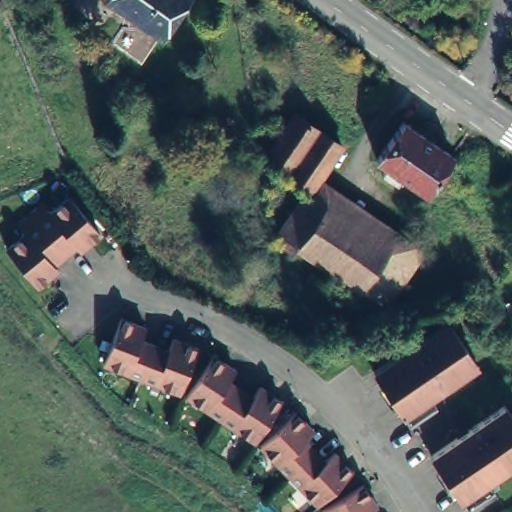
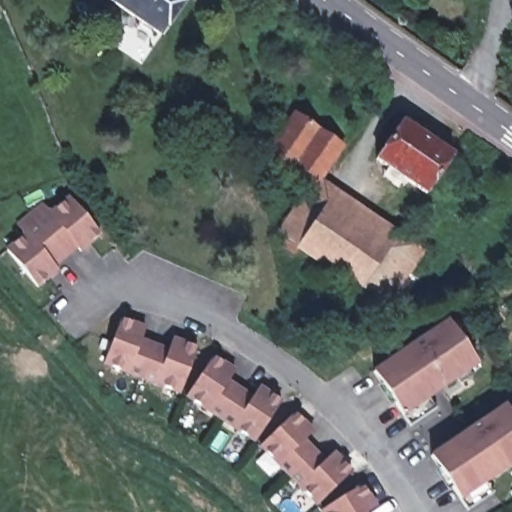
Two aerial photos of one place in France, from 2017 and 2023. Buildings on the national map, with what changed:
unchanged [(140,14),(120,0),(179,0),(160,28),(158,26),(149,39),(132,26),(140,14)]
unchanged [(120,40),(128,28),(149,42),(140,55),(120,40)]
unchanged [(311,196),(387,248),(397,235),(421,253),(383,306),(300,250),(293,260),(282,252),(288,243),(279,236),(307,192),(265,161),(297,118),(342,150),(311,196)]
unchanged [(415,190),(367,156),(394,120),(409,130),(414,124),(430,135),(426,141),(441,151),(415,190)]
unchanged [(95,238),(75,255),(72,251),(49,269),(52,274),(32,290),(2,252),(20,236),(12,227),(38,208),(45,216),(65,201),(95,238)]
unchanged [(145,326),(140,338),(168,348),(172,336),(196,346),(180,390),(103,362),(122,317),(145,326)]
unchanged [(399,357),(443,327),(472,371),(425,402),(432,413),(405,432),(367,378),(399,357)]
unchanged [(213,356),(233,369),(227,380),(253,397),(260,387),(281,401),(255,439),(216,415),(187,394),(213,356)]
unchanged [(469,512),(459,512),(425,462),(500,412),(512,431),(512,467),(482,487),(488,498),(487,500),(469,512)]
unchanged [(312,433),(305,439),(325,461),(333,455),(350,472),(317,504),(261,446),(295,414),(312,433)]
unchanged [(363,485),(375,506),(367,512),(322,512),(321,510),(363,485)]

